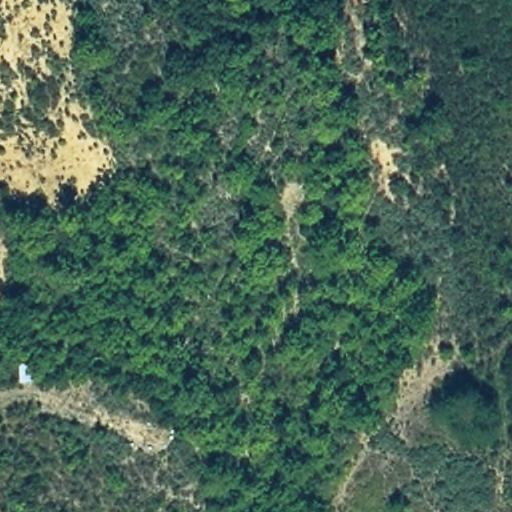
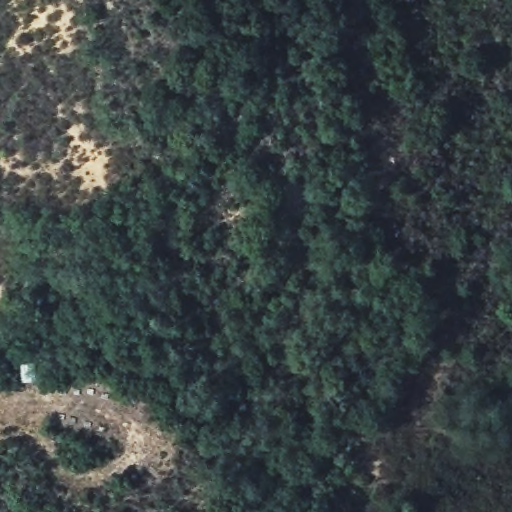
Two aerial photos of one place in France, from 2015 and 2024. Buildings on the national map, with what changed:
unchanged [(355,0),(379,0),(379,2),(357,10),(355,0)]
unchanged [(21,363),(42,363),(42,383),(23,385),(21,363)]

